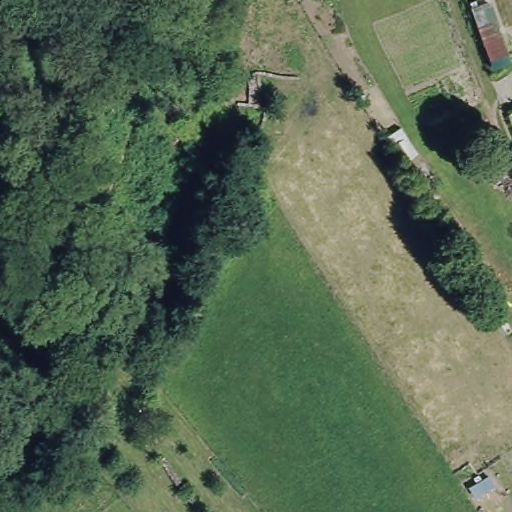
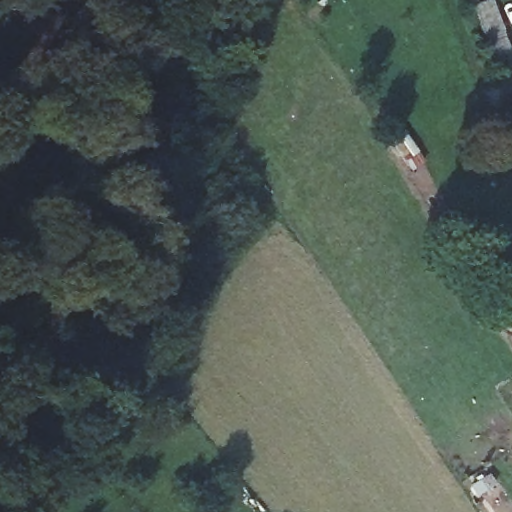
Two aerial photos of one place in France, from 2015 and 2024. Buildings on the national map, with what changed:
unchanged [(422,156),(411,165),(393,141),(405,131),(422,156)]
unchanged [(497,146),(508,172),(497,178),(492,169),(485,172),(477,155),(497,146)]

